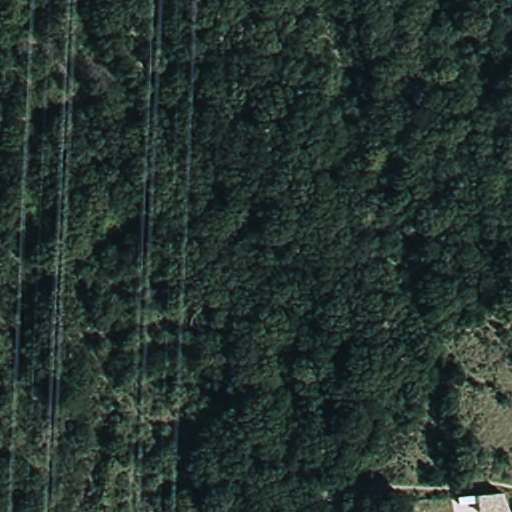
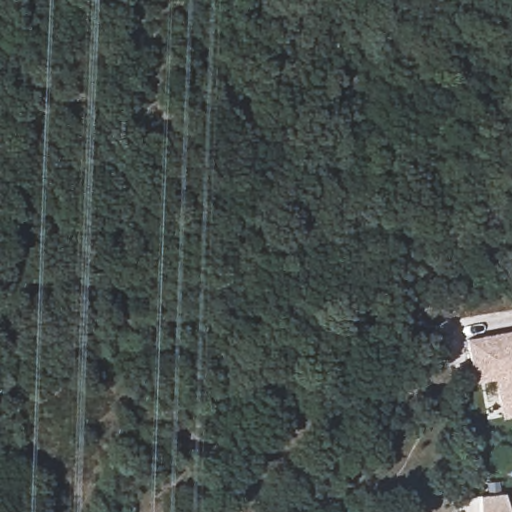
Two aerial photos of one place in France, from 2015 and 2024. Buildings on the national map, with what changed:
new [(512,416),(499,418),(494,380),(471,384),(465,339),(512,331),(512,416)]
unchanged [(494,512),(479,512),(477,496),(504,494),(509,511),(494,512)]

